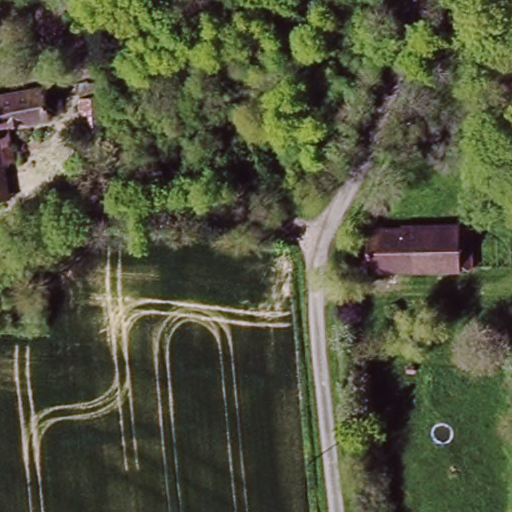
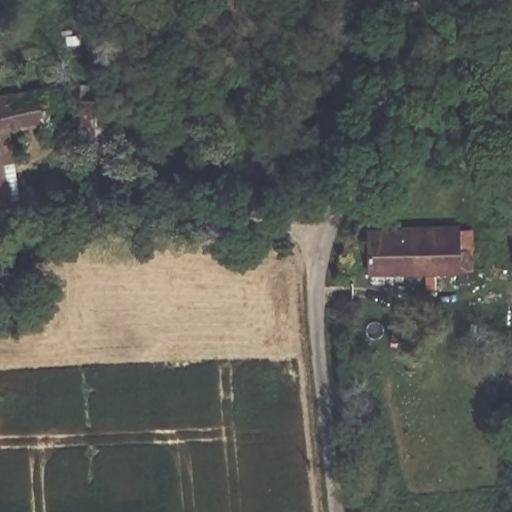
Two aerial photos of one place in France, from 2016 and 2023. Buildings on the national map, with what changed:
unchanged [(0,130),(0,95),(51,86),(57,119),(0,130)]
unchanged [(109,145),(80,145),(80,90),(109,90),(109,145)]
unchanged [(0,172),(0,143),(6,171),(0,172)]
unchanged [(0,228),(0,184),(6,184),(13,227),(0,228)]
unchanged [(468,271),(368,273),(367,264),(352,265),(352,245),(368,245),(367,223),(467,222),(468,271)]

